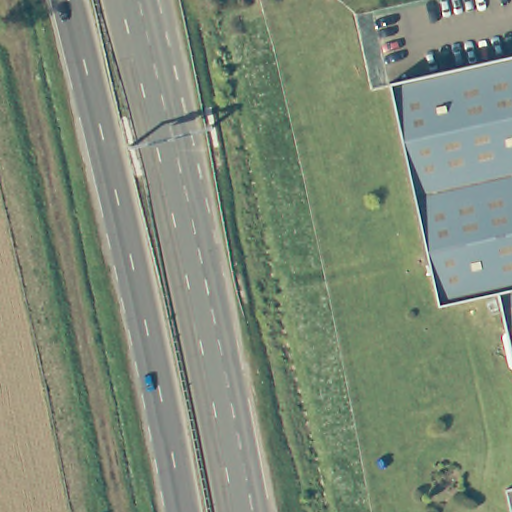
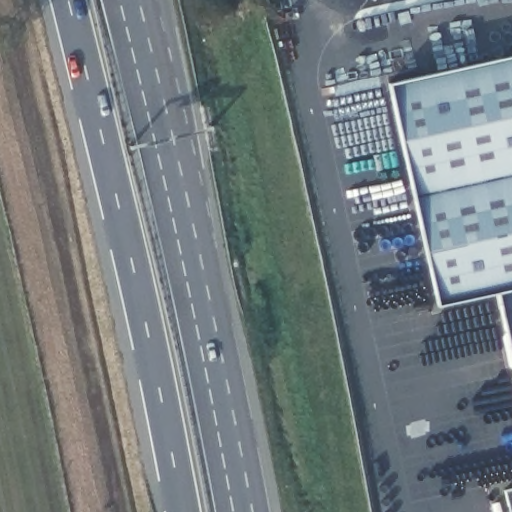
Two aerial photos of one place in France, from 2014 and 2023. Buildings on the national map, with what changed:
unchanged [(496,295),(431,309),(385,86),(512,57),(512,369),(496,295)]
unchanged [(507,512),(502,491),(512,489),(512,512),(507,512)]

